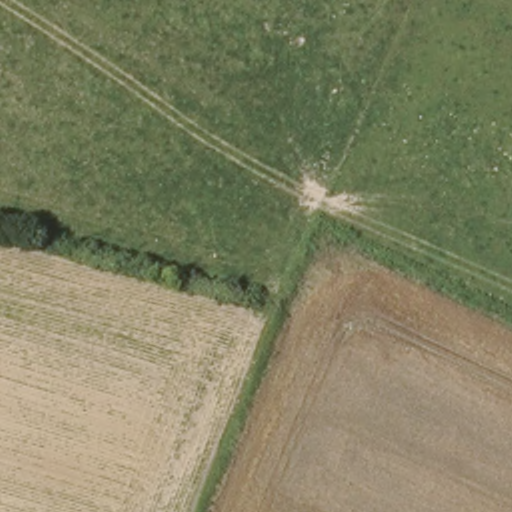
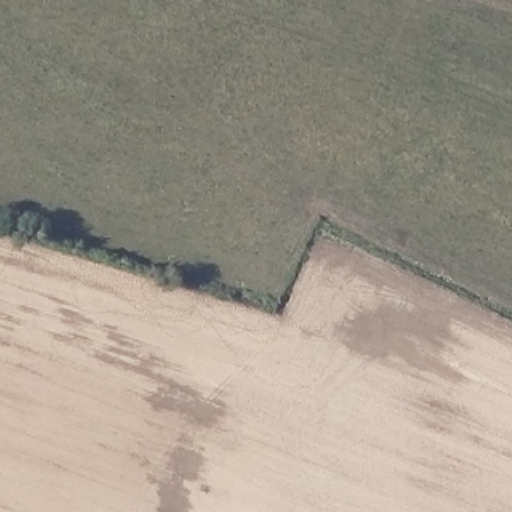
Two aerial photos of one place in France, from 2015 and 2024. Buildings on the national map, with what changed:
[]

